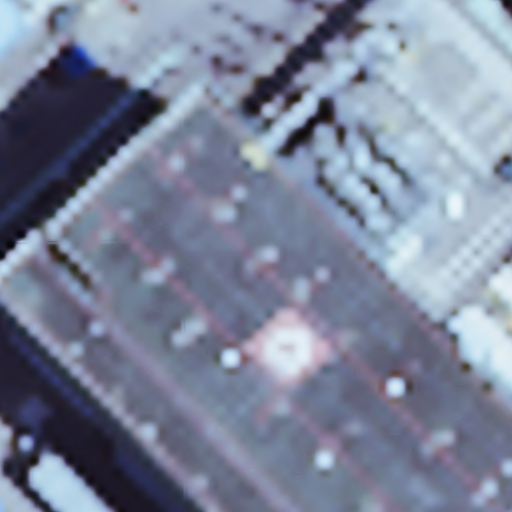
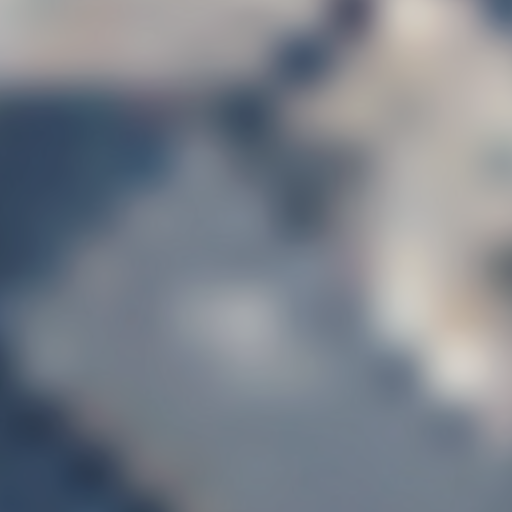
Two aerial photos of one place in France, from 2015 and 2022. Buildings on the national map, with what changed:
demolished [(0,0),(59,0),(0,57),(0,0)]
demolished [(512,0),(512,5),(508,0),(512,0)]
demolished [(287,179),(354,109),(430,176),(415,191),(437,213),(376,276),(369,284),(275,190),(287,179)]
demolished [(275,190),(369,284),(512,431),(512,512),(174,512),(0,334),(0,321),(39,285),(209,120),(240,152),(275,190)]

